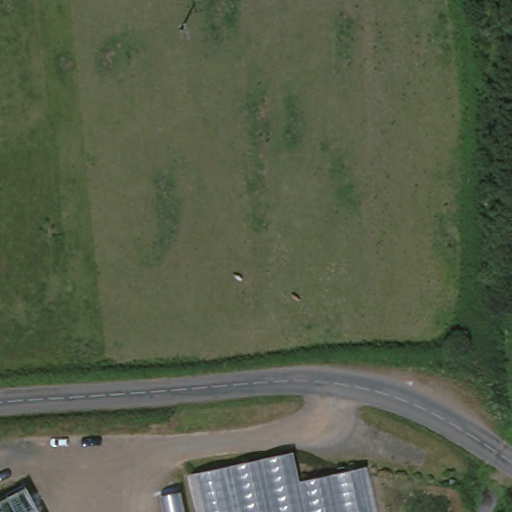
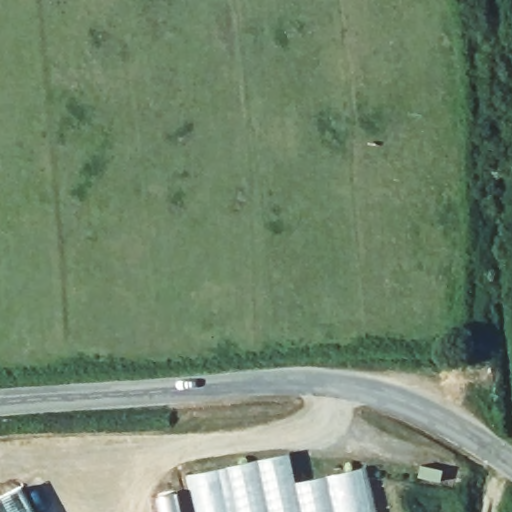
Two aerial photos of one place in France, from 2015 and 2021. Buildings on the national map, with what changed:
unchanged [(294,480),(358,466),(368,512),(186,512),(179,474),(288,452),(294,480)]
unchanged [(0,499),(18,489),(31,512),(0,512),(0,499)]

